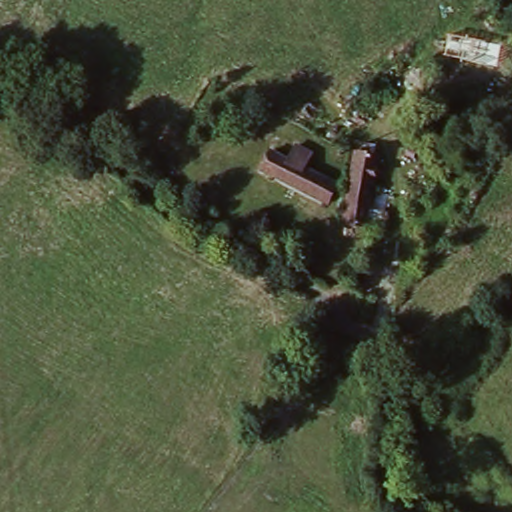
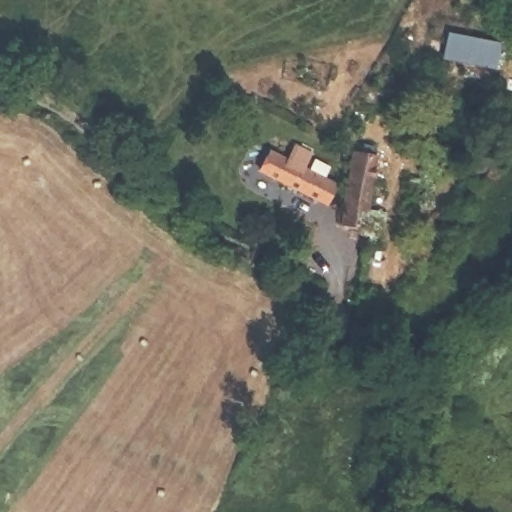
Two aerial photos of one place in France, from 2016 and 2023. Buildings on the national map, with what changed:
new [(502,45),(498,73),(443,62),(447,36),(502,45)]
unchanged [(284,158),(290,144),(310,153),(304,168),(337,183),(327,206),(260,175),(269,152),(284,158)]
unchanged [(337,222),(359,148),(381,156),(365,208),(379,215),(373,233),(363,231),(337,222)]

